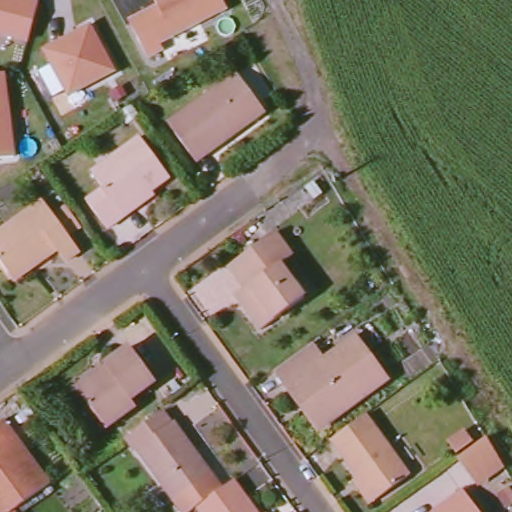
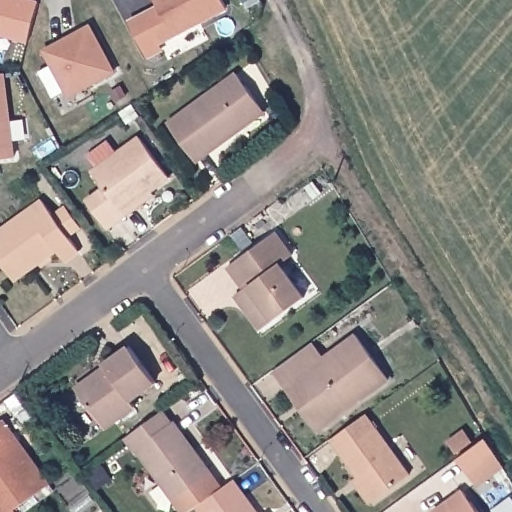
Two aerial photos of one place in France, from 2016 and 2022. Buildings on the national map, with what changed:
unchanged [(0,0),(17,0),(40,6),(30,44),(0,36),(0,0)]
unchanged [(227,10),(160,45),(146,17),(160,10),(154,0),(222,0),(227,10)]
unchanged [(115,74),(88,88),(87,86),(68,96),(47,56),(62,48),(66,49),(72,46),(70,41),(91,29),(115,74)]
unchanged [(170,121),(241,70),(266,104),(240,124),(245,129),(200,161),(170,121)]
unchanged [(15,161),(0,163),(0,80),(5,79),(15,161)]
unchanged [(126,84),(131,93),(122,98),(117,89),(126,84)]
unchanged [(138,103),(145,113),(133,121),(126,111),(138,103)]
unchanged [(133,204),(105,226),(82,195),(98,182),(88,164),(136,130),(167,170),(148,183),(153,190),(133,204)]
unchanged [(319,178),(329,192),(320,198),(309,185),(319,178)]
unchanged [(0,219),(35,193),(45,206),(56,198),(72,220),(60,228),(72,245),(55,257),(47,246),(31,258),(7,277),(0,267),(0,219)]
unchanged [(245,283),(230,263),(242,254),(280,228),(297,252),(286,261),(310,291),(266,328),(250,307),(237,290),(245,283)]
unchanged [(313,339),(323,354),(354,331),(386,376),(330,420),(298,376),(286,383),(275,368),(313,339)]
unchanged [(107,376),(102,368),(126,348),(152,384),(133,397),(140,407),(107,429),(82,393),(107,376)]
unchanged [(168,407),(175,417),(180,415),(200,445),(193,449),(222,489),(198,506),(191,511),(143,445),(138,447),(130,435),(168,407)]
unchanged [(353,474),(360,469),(332,434),(369,407),(415,467),(379,493),(372,499),(353,474)]
unchanged [(50,480),(14,507),(8,512),(0,512),(0,418),(3,416),(50,480)]
unchanged [(452,446),(473,430),(481,442),(462,456),(452,446)]
unchanged [(492,440),(508,467),(475,489),(457,465),(492,440)]
unchanged [(237,477),(262,512),(202,512),(198,506),(222,489),(237,477)]
unchanged [(476,512),(434,512),(461,491),(476,512)]
unchanged [(18,512),(8,512),(14,507),(18,512)]

